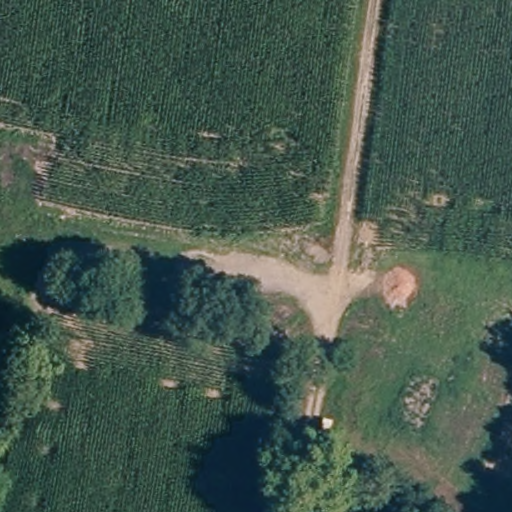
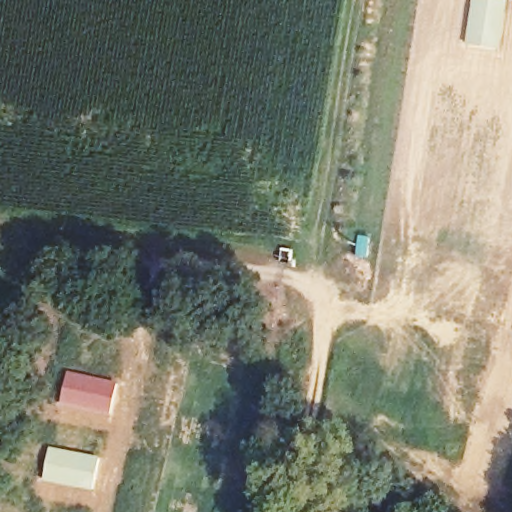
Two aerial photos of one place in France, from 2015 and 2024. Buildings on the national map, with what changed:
new [(467,45),(473,0),(507,0),(500,50),(467,45)]
new [(119,382),(112,413),(62,403),(69,372),(119,382)]
new [(101,457),(94,492),(45,482),(52,447),(101,457)]

